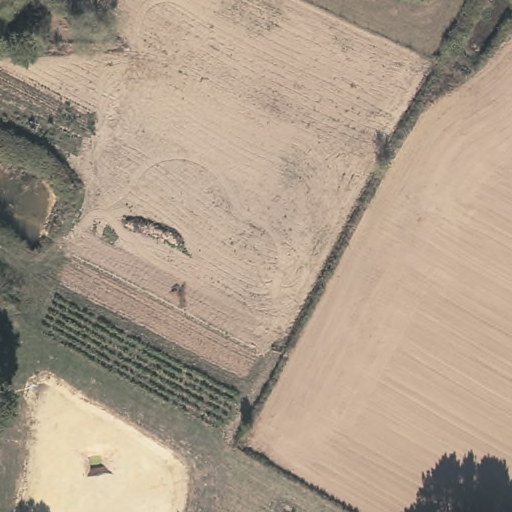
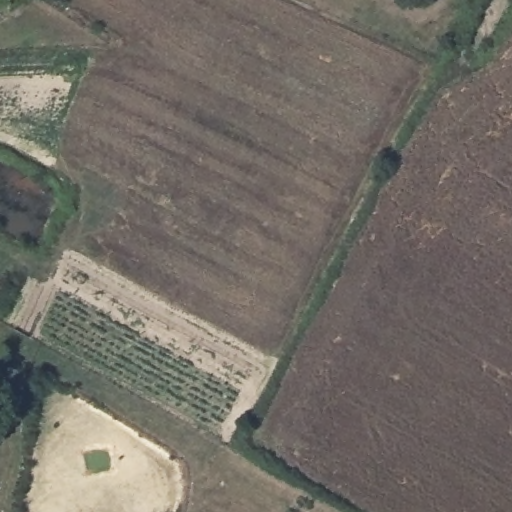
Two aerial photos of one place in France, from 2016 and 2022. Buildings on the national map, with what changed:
[]

